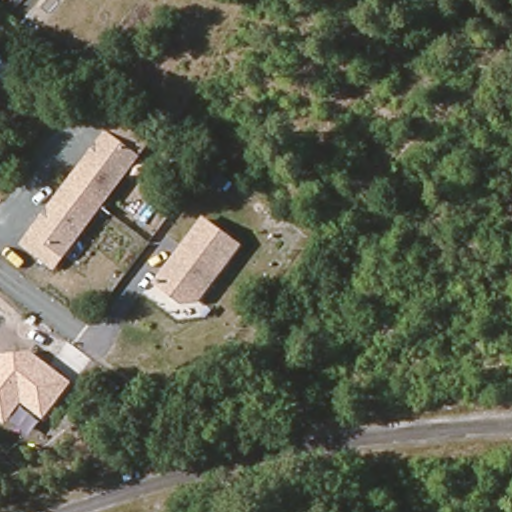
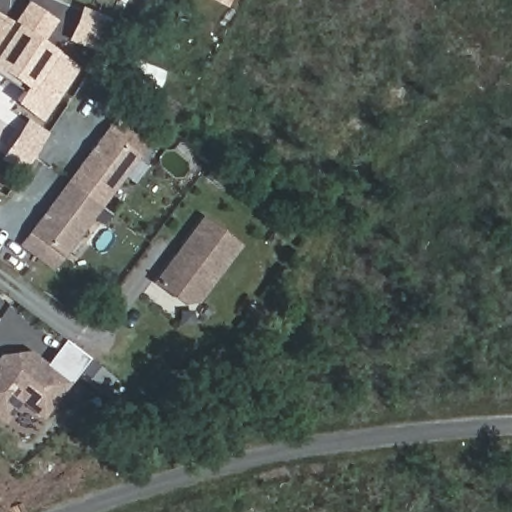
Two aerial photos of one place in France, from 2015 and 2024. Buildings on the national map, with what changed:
new [(44,53),(8,28),(26,0),(56,21),(40,42),(77,69),(40,121),(13,103),(20,92),(0,78),(0,55),(29,74),(44,53)]
new [(209,0),(229,0),(224,8),(209,0)]
new [(107,18),(104,25),(97,23),(87,49),(67,40),(80,7),(107,18)]
new [(29,74),(0,55),(0,23),(44,53),(29,74)]
unchanged [(93,71),(83,80),(73,69),(83,60),(93,71)]
unchanged [(21,246),(29,234),(103,135),(112,123),(142,146),(133,158),(60,256),(51,268),(21,246)]
unchanged [(194,302),(179,304),(154,284),(201,222),(235,247),(194,302)]
unchanged [(3,423),(0,421),(0,353),(30,350),(71,382),(42,418),(21,402),(3,423)]

